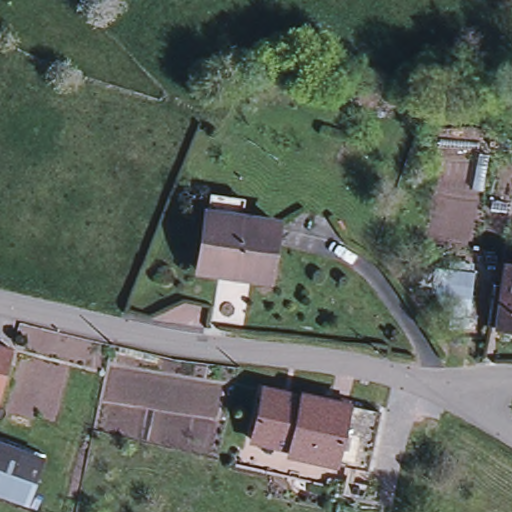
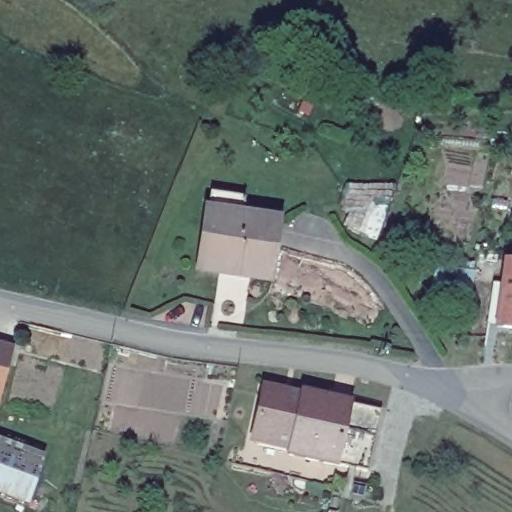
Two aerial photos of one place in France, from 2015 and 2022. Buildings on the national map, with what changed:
unchanged [(362,96),(350,136),(326,126),(340,90),(362,96)]
unchanged [(199,271),(200,262),(207,212),(277,222),(270,272),(269,281),(199,271)]
unchanged [(502,327),(503,324),(494,324),(499,284),(508,285),(510,265),(512,265),(512,328),(502,327)]
unchanged [(0,401),(0,346),(14,350),(0,401)]
unchanged [(302,397),(302,394),(349,404),(337,463),(290,453),(290,448),(252,440),(264,388),(302,397)]
unchanged [(381,411),(368,470),(337,463),(349,404),(381,411)]
unchanged [(27,501),(0,492),(0,448),(5,450),(40,463),(27,501)]

